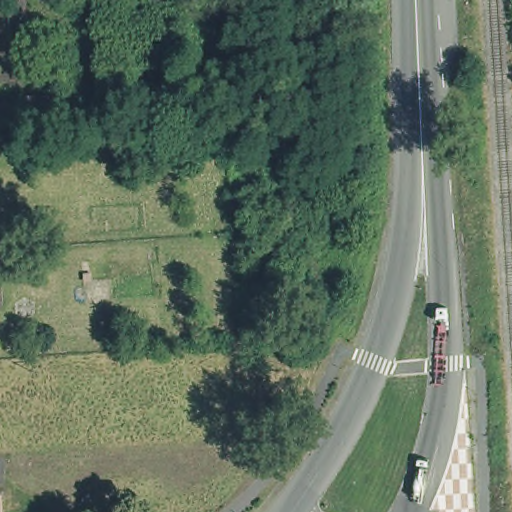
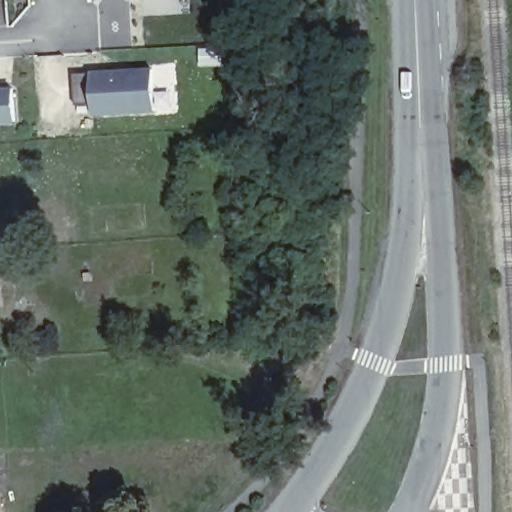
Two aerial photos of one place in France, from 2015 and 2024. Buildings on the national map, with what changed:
new [(91,104),(77,105),(75,74),(92,73),(91,70),(152,67),(155,112),(92,116),(91,104)]
new [(17,123),(0,124),(0,87),(14,86),(17,123)]
demolished [(34,97),(36,124),(22,125),(20,97),(34,97)]
unchanged [(5,307),(0,308),(0,252),(2,251),(5,307)]
unchanged [(0,499),(1,499),(2,512),(0,512),(0,499)]

